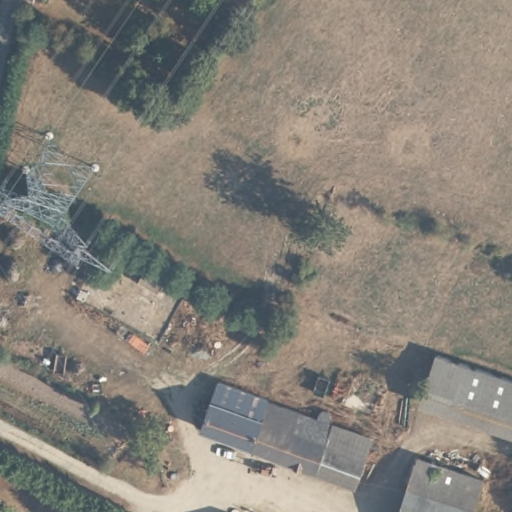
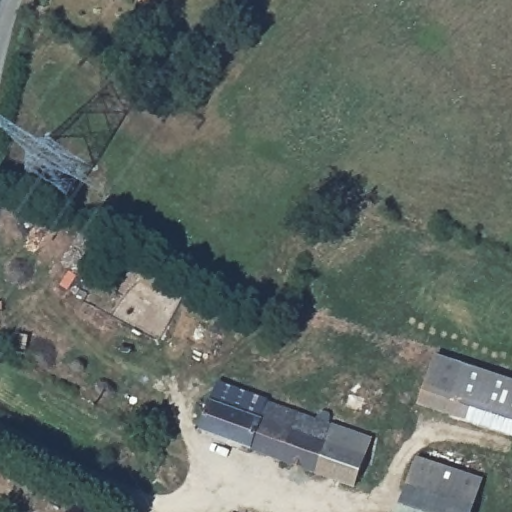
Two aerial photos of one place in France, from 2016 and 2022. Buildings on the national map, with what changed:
unchanged [(512,434),(417,402),(435,349),(512,374),(512,434)]
unchanged [(358,461),(350,477),(200,421),(219,374),(246,384),(315,411),(319,403),(331,408),(327,417),(371,432),(358,461)]
unchanged [(424,451),(487,480),(473,511),(411,483),(424,451)]
unchanged [(472,512),(398,512),(411,483),(473,511),(472,512)]
unchanged [(244,512),(231,512),(235,506),(244,512)]

